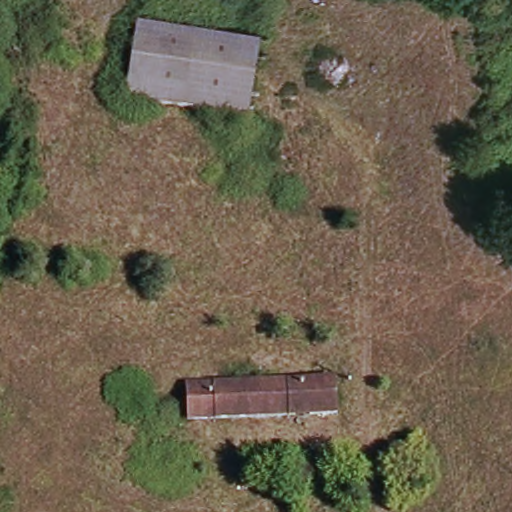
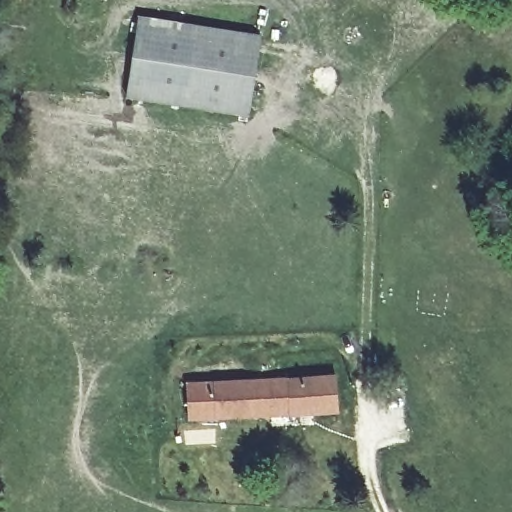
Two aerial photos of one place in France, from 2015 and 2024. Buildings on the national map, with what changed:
unchanged [(141,14),(157,17),(142,97),(124,93),(141,14)]
unchanged [(261,38),(246,119),(142,97),(157,17),(261,38)]
unchanged [(257,385),(256,416),(188,417),(189,385),(257,385)]
unchanged [(302,386),(300,416),(256,416),(257,385),(302,386)]
unchanged [(300,416),(302,386),(338,387),(337,417),(300,416)]

